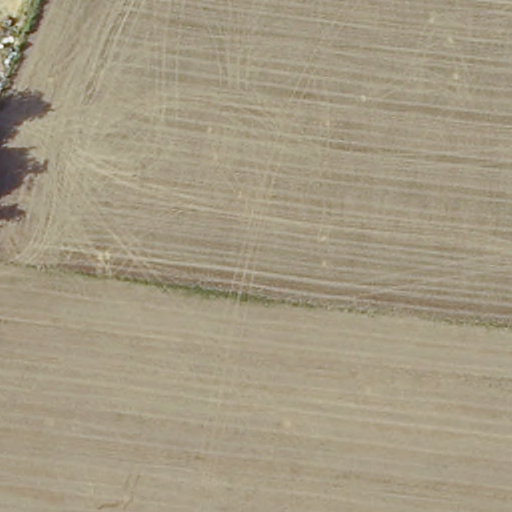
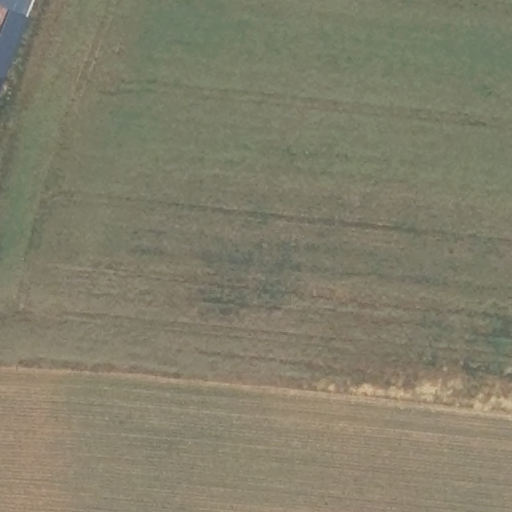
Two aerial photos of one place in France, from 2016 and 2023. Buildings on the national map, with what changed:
new [(0,34),(10,8),(0,3),(0,0),(35,0),(5,77),(0,76),(0,34)]
unchanged [(0,90),(0,76),(5,77),(0,90)]

